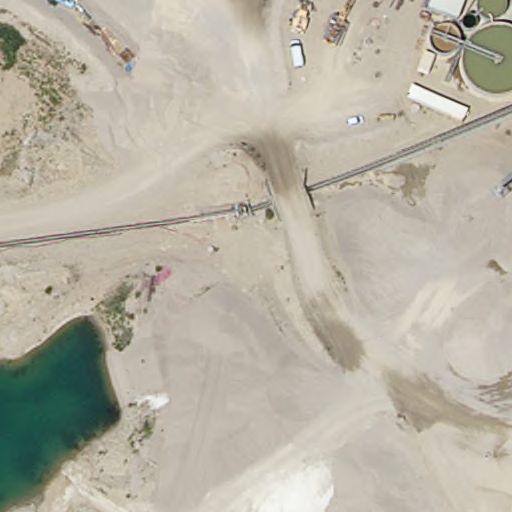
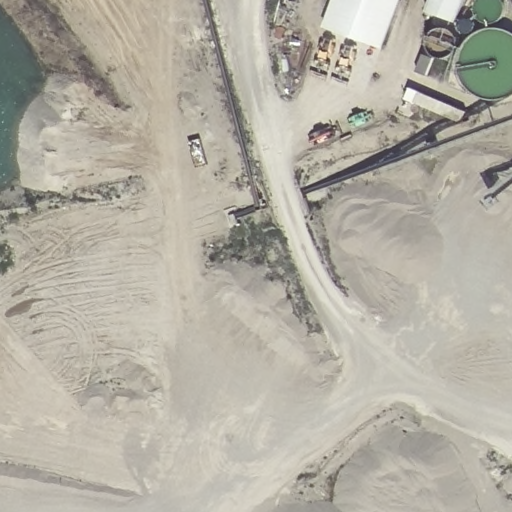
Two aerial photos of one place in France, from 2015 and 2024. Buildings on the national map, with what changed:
new [(385,47),(325,26),(335,0),(402,0),(385,47)]
unchanged [(460,21),(427,9),(431,0),(467,0),(460,21)]

